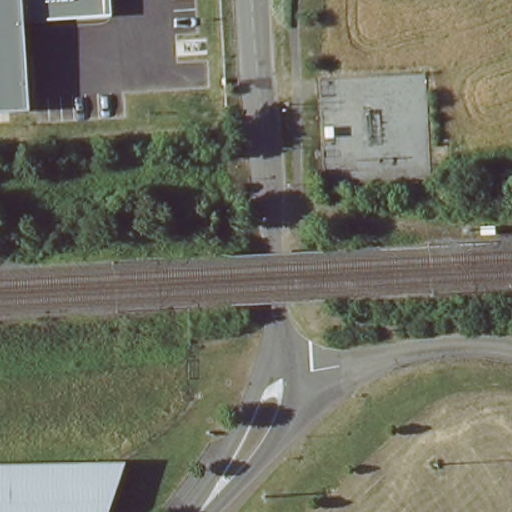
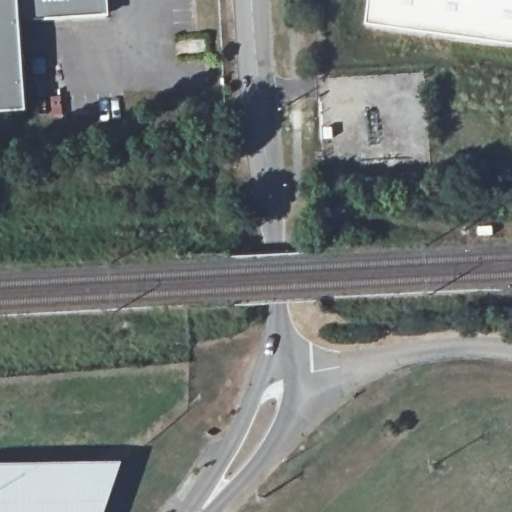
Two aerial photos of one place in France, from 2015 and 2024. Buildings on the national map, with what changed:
unchanged [(28,110),(0,112),(0,0),(109,0),(110,16),(22,21),(28,110)]
new [(373,0),(512,0),(512,45),(370,25),(373,0)]
unchanged [(99,512),(0,512),(0,466),(98,463),(99,512)]

